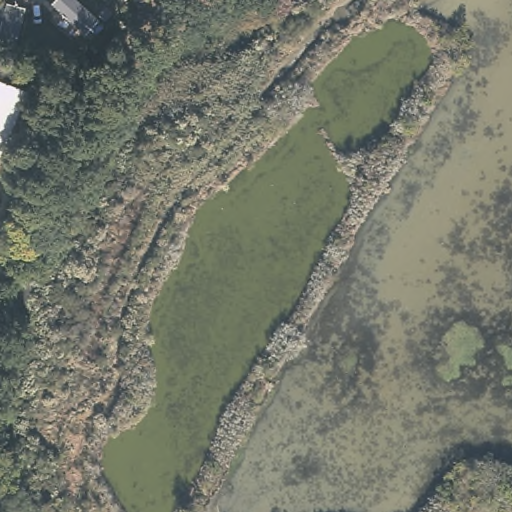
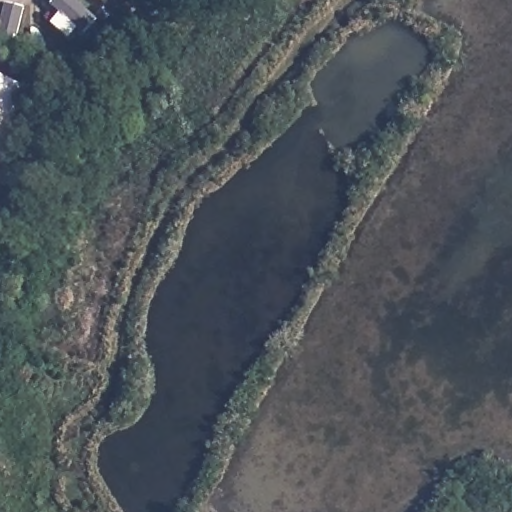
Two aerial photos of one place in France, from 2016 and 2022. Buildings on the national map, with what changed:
unchanged [(0,153),(0,79),(27,90),(0,153)]

